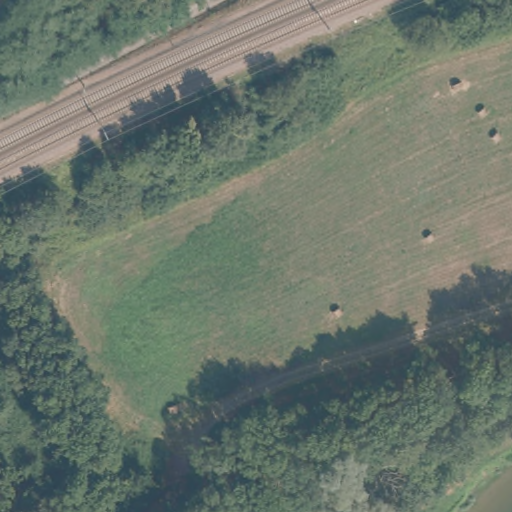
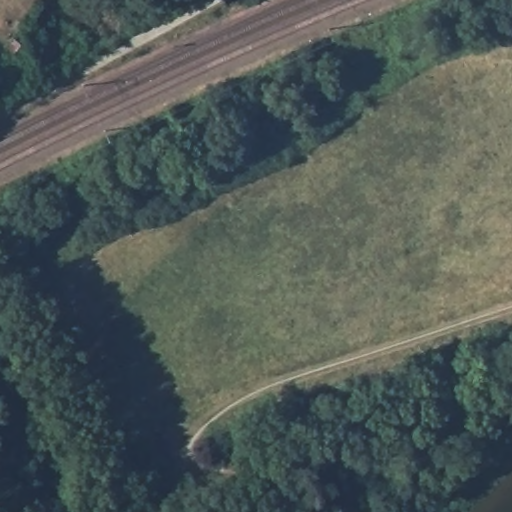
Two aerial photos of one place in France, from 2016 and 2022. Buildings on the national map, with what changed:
unchanged [(12,28),(20,35),(9,45),(1,38),(12,28)]

